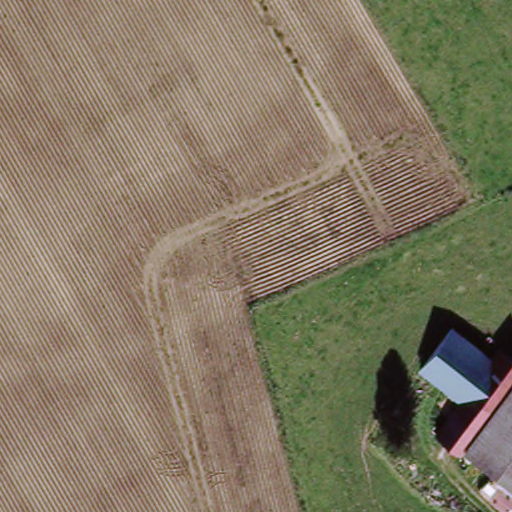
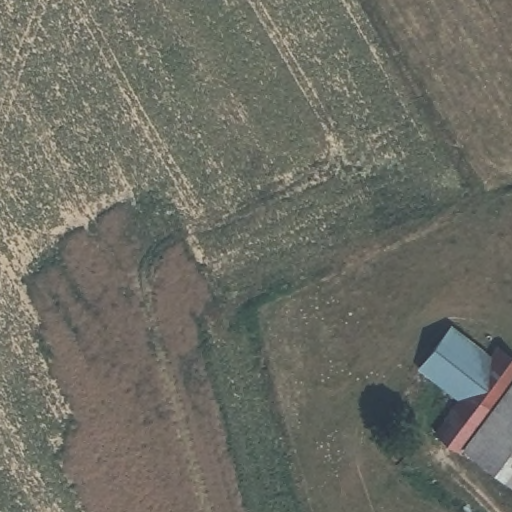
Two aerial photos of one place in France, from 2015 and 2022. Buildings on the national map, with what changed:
unchanged [(453,326),(485,352),(461,382),(428,356),(453,326)]
unchanged [(512,356),(512,363),(447,444),(425,427),(461,382),(485,352),(494,341),(512,356)]
unchanged [(512,494),(447,444),(512,363),(512,494)]

